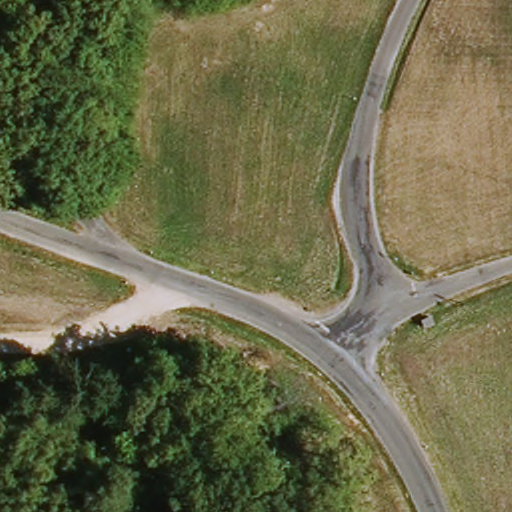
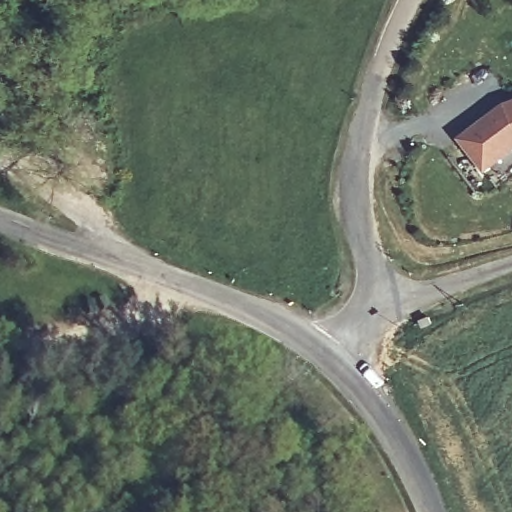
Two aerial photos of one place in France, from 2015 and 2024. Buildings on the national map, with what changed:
new [(507,100),(512,98),(512,150),(484,173),(457,137),(507,100)]
unchanged [(108,352),(119,358),(113,368),(102,362),(108,352)]

